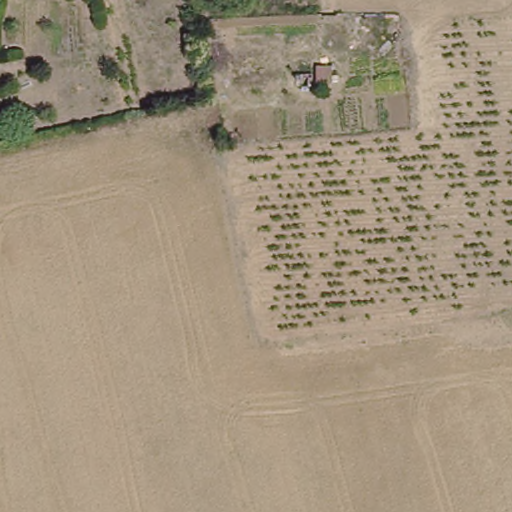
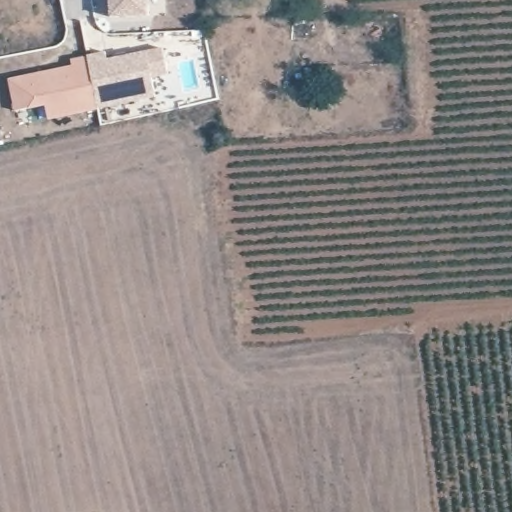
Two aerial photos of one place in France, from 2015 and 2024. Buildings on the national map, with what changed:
new [(152,20),(112,19),(111,0),(151,0),(152,20)]
new [(73,65),(71,59),(106,51),(109,60),(164,49),(171,75),(154,79),(159,98),(50,121),(45,105),(18,112),(10,80),(73,65)]
demolished [(16,70),(4,71),(0,56),(0,52),(12,50),(16,70)]

